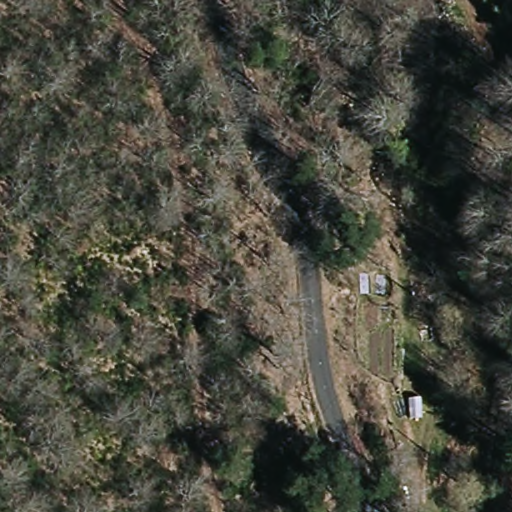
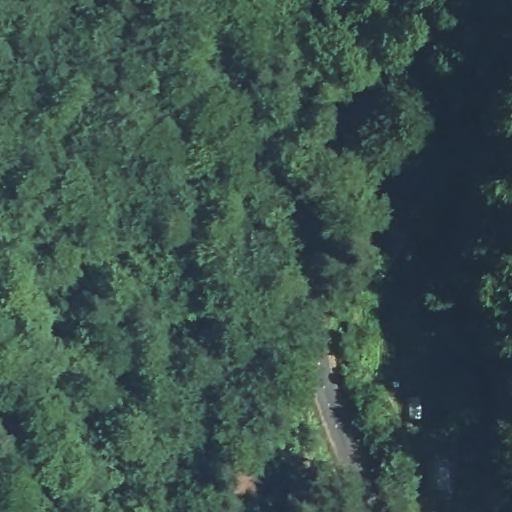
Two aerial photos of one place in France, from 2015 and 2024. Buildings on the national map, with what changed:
unchanged [(512,53),(512,68),(501,71),(493,40),(506,35),(512,53)]

